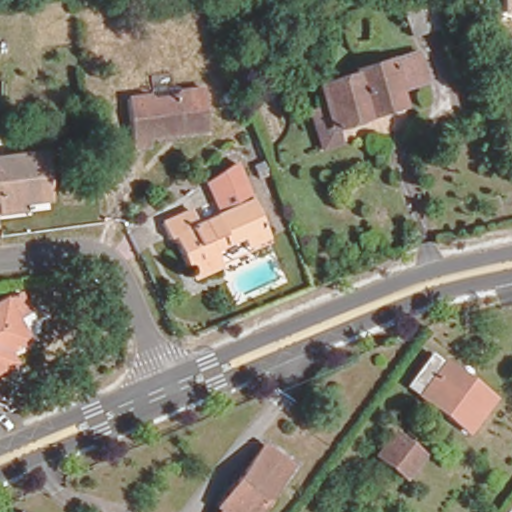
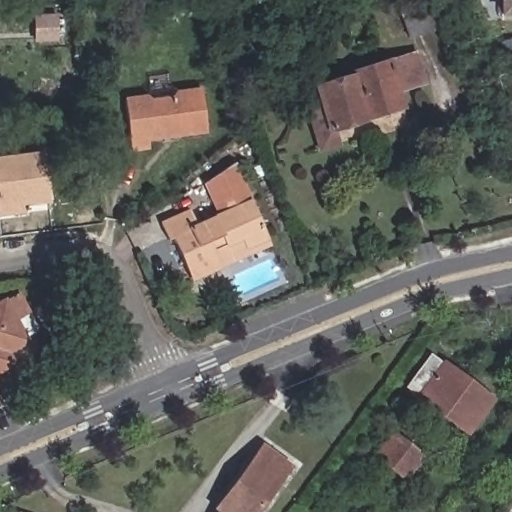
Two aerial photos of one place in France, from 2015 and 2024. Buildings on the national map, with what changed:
unchanged [(499,19),(498,0),(512,0),(512,18),(499,19)]
unchanged [(431,7),(440,34),(415,41),(407,15),(431,7)]
unchanged [(315,120),(328,115),(322,95),(360,83),(359,80),(419,60),(428,89),(402,98),(407,112),(339,135),(343,150),(326,155),(315,120)]
unchanged [(209,125),(151,135),(152,142),(132,145),(125,93),(146,90),(150,84),(174,80),(178,85),(202,81),(209,125)]
unchanged [(1,198),(0,192),(0,150),(47,144),(54,191),(30,194),(31,203),(2,206),(1,198)]
unchanged [(245,254),(242,245),(214,257),(221,272),(191,285),(173,245),(169,246),(161,230),(190,217),(197,231),(221,220),(206,187),(233,169),(267,244),(245,254)]
unchanged [(0,376),(0,311),(3,309),(21,300),(30,316),(12,325),(25,347),(4,358),(11,370),(4,373),(0,376)]
unchanged [(431,355),(490,401),(467,432),(407,386),(431,355)]
unchanged [(397,438),(427,460),(410,484),(380,461),(397,438)]
unchanged [(260,457),(287,477),(261,512),(220,512),(231,498),(260,457)]

